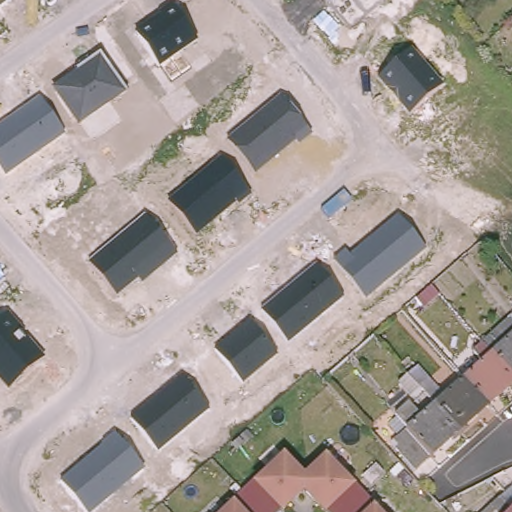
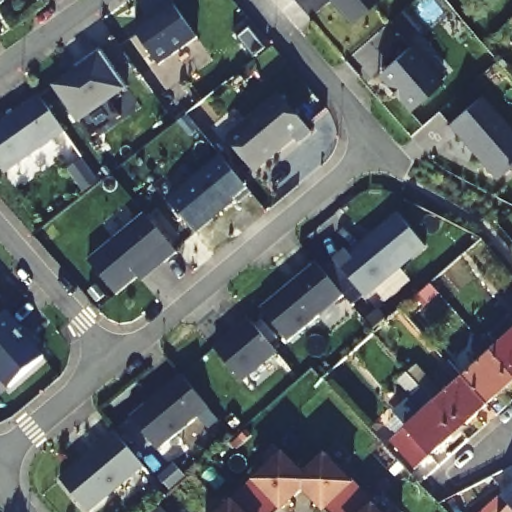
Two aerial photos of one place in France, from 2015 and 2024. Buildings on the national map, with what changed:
unchanged [(7,0),(0,5),(0,0),(7,0)]
unchanged [(331,0),(378,0),(350,25),(331,0)]
unchanged [(198,41),(160,67),(136,31),(174,4),(198,41)]
new [(408,42),(391,23),(403,13),(419,32),(408,42)]
unchanged [(512,14),(512,17),(511,15),(512,14)]
unchanged [(424,67),(426,65),(443,86),(409,113),(378,77),(411,49),(424,67)]
unchanged [(129,93),(79,127),(53,88),(74,73),(73,70),(99,53),(129,93)]
unchanged [(313,136),(299,147),(295,142),(258,173),(229,140),(282,96),(313,136)]
unchanged [(66,134),(6,176),(0,167),(0,126),(40,97),(66,134)]
new [(512,134),(512,166),(497,181),(450,123),(482,98),(512,134)]
unchanged [(251,196),(238,206),(236,204),(196,235),(168,201),(226,157),(251,196)]
unchanged [(179,254),(142,285),(138,280),(117,296),(91,265),(148,214),(179,254)]
unchanged [(427,249),(367,301),(336,261),(346,252),(351,256),(399,217),(427,249)]
unchanged [(345,298),(289,343),(264,312),(321,265),(345,298)]
unchanged [(416,298),(431,286),(439,295),(424,307),(416,298)]
unchanged [(45,357),(8,390),(0,381),(0,318),(7,312),(45,357)]
unchanged [(512,313),(512,379),(511,380),(487,354),(489,352),(479,342),(512,313)]
unchanged [(278,354),(242,383),(214,348),(249,318),(278,354)]
unchanged [(458,380),(477,363),(469,353),(479,345),(487,354),(511,380),(482,406),(458,380)]
unchanged [(440,396),(458,380),(482,406),(454,431),(430,405),(416,389),(407,397),(393,382),(403,373),(412,365),(440,396)]
unchanged [(211,410),(158,452),(131,420),(183,376),(211,410)]
unchanged [(409,472),(386,445),(402,430),(389,415),(404,403),(417,417),(430,405),(454,431),(409,472)]
unchanged [(145,467),(92,512),(88,512),(61,480),(118,433),(145,467)]
unchanged [(304,489),(280,512),(264,512),(243,490),(269,466),(271,467),(284,455),(298,469),(305,477),(304,489)]
unchanged [(326,456),(339,470),(341,467),(366,493),(347,512),(326,512),(304,489),(305,477),(326,456)]
unchanged [(505,482),(512,476),(512,512),(470,512),(505,482)]
unchanged [(264,512),(220,512),(243,490),(264,512)]
unchanged [(366,493),(383,512),(347,512),(366,493)]

